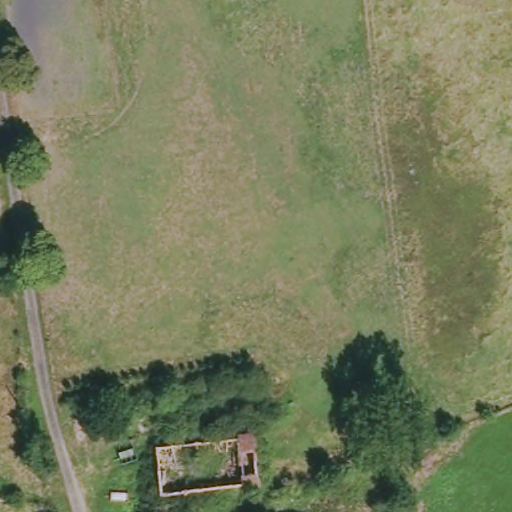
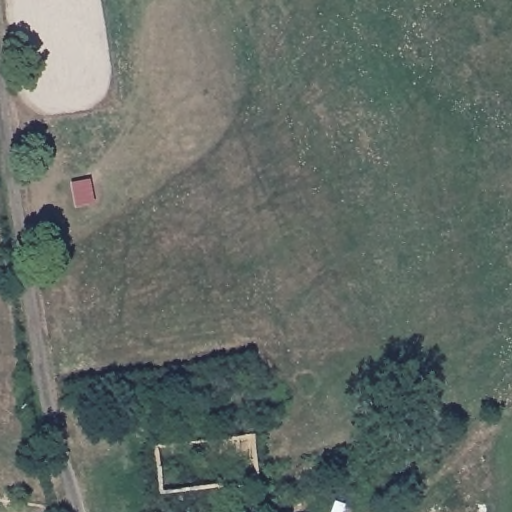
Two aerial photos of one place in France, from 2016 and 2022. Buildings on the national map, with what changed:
unchanged [(178,493),(173,443),(245,436),(251,486),(178,493)]
unchanged [(152,495),(148,445),(173,443),(178,493),(152,495)]

